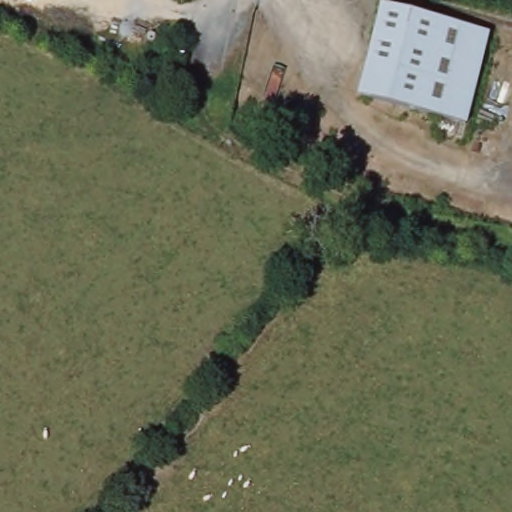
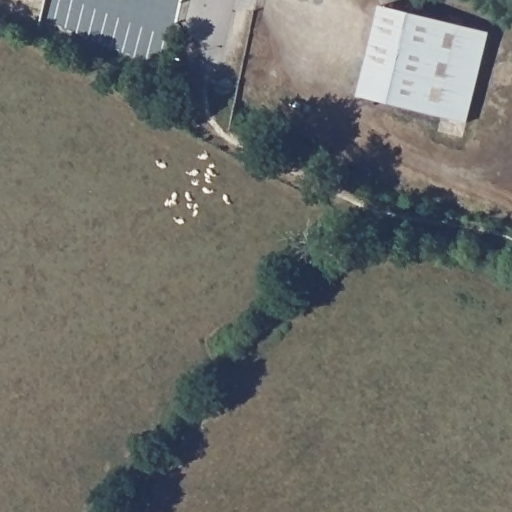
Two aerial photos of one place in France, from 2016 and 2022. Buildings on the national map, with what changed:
unchanged [(387,3),(492,30),(468,121),(363,94),(387,3)]

